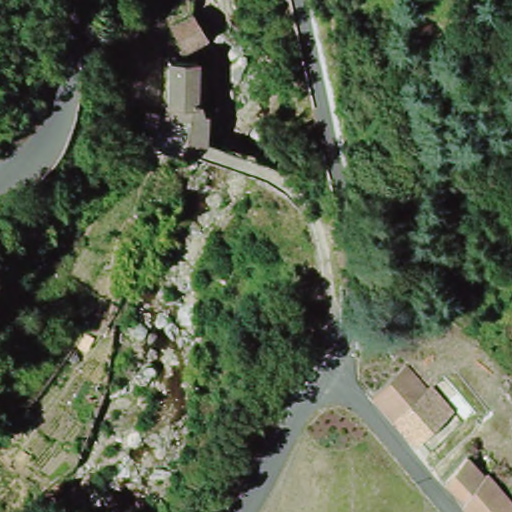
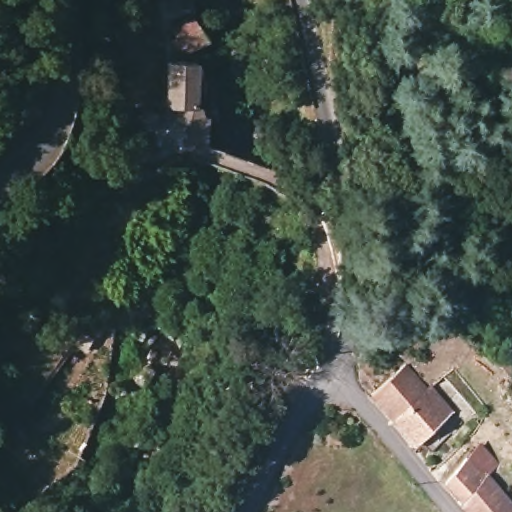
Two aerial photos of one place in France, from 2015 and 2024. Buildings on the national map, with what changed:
unchanged [(175,29),(190,16),(206,34),(189,48),(175,29)]
unchanged [(188,114),(163,110),(169,57),(205,62),(204,75),(193,74),(188,114)]
unchanged [(216,102),(214,117),(208,117),(204,133),(198,133),(183,133),(188,114),(201,115),(202,101),(216,102)]
unchanged [(404,371),(427,395),(395,424),(374,399),(404,371)]
unchanged [(427,395),(434,395),(454,418),(418,451),(395,424),(427,395)]
unchanged [(470,461),(487,477),(494,470),(497,472),(500,476),(504,473),(509,477),(507,481),(501,487),(512,498),(512,512),(472,512),(464,500),(448,482),(470,461)]

